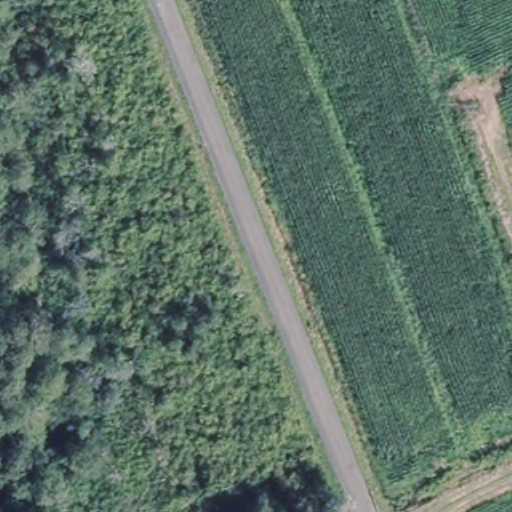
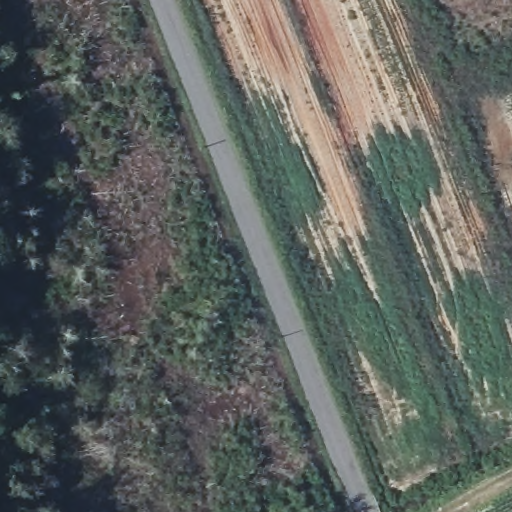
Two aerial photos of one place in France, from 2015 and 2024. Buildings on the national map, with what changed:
[]

